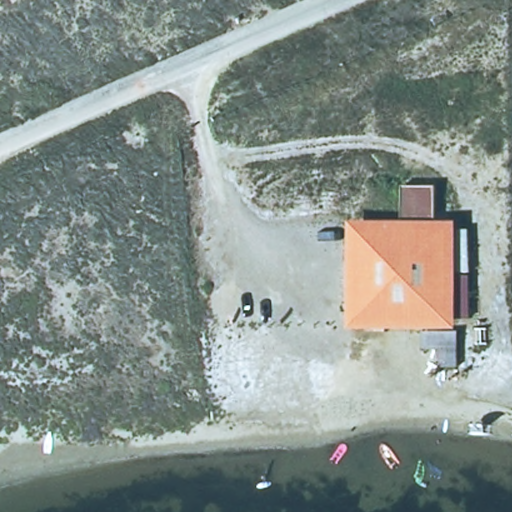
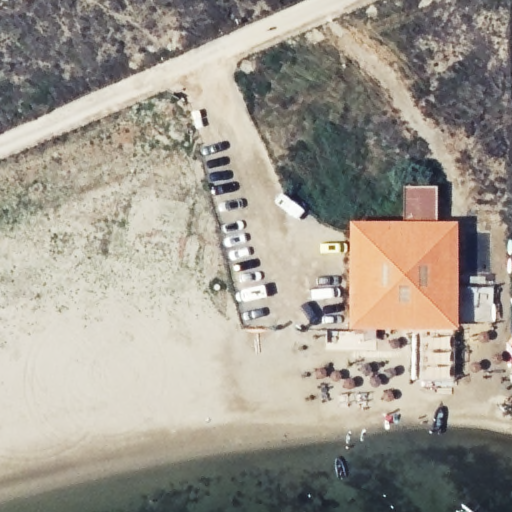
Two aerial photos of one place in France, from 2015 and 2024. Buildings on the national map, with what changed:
unchanged [(461,224),(459,329),(354,328),(355,223),(461,224)]

